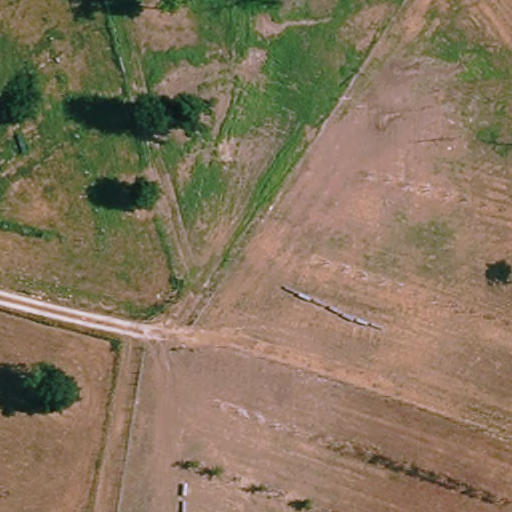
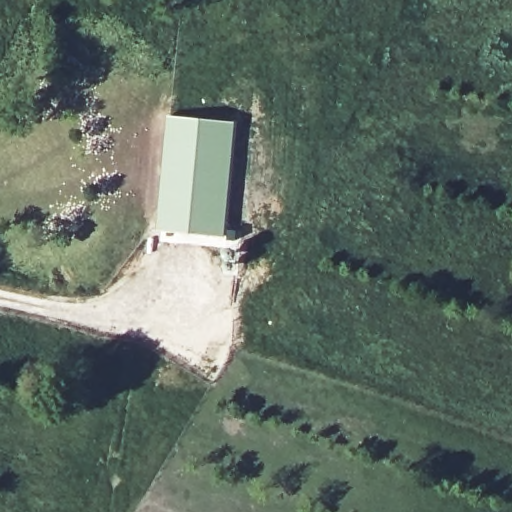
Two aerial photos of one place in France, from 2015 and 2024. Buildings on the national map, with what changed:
new [(167,114),(237,121),(225,237),(156,230),(167,114)]

